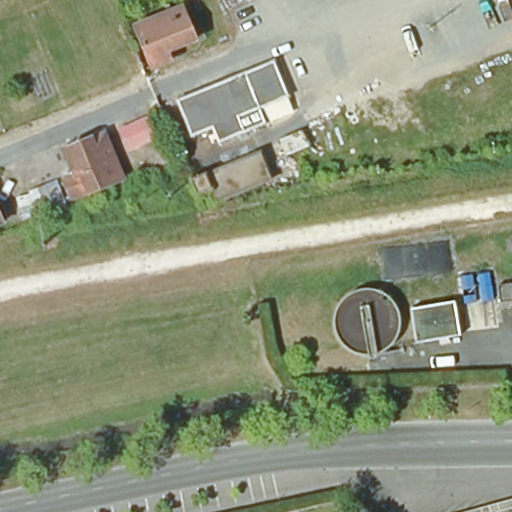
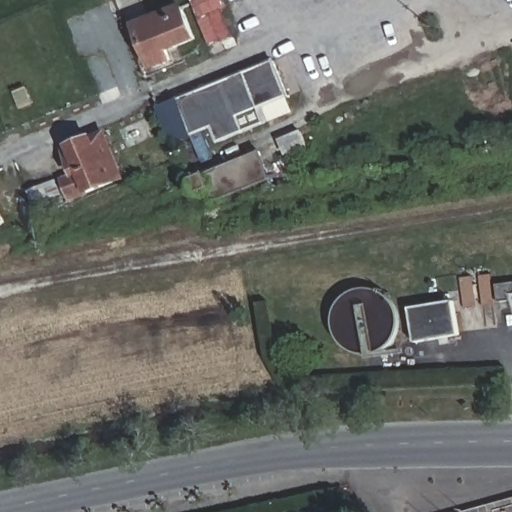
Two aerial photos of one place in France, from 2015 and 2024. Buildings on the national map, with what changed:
unchanged [(200,36),(160,54),(165,68),(146,75),(128,28),(187,4),(200,36)]
unchanged [(283,97),(263,106),(266,117),(216,138),(212,127),(190,136),(179,101),(270,63),(283,97)]
unchanged [(146,117),(155,139),(129,149),(120,128),(146,117)]
unchanged [(303,141),(281,149),(275,134),(298,126),(303,141)]
unchanged [(125,178),(73,198),(66,183),(73,179),(62,151),(108,132),(125,178)]
unchanged [(190,178),(260,152),(271,178),(216,199),(213,192),(198,196),(190,178)]
unchanged [(29,192),(57,181),(67,208),(39,220),(25,225),(15,198),(29,192)]
unchanged [(2,223),(0,224),(0,216),(2,223)]
unchanged [(512,302),(500,303),(498,287),(512,285),(512,302)]
unchanged [(459,336),(417,346),(411,310),(455,302),(459,336)]
unchanged [(512,512),(497,512),(512,508),(512,512)]

